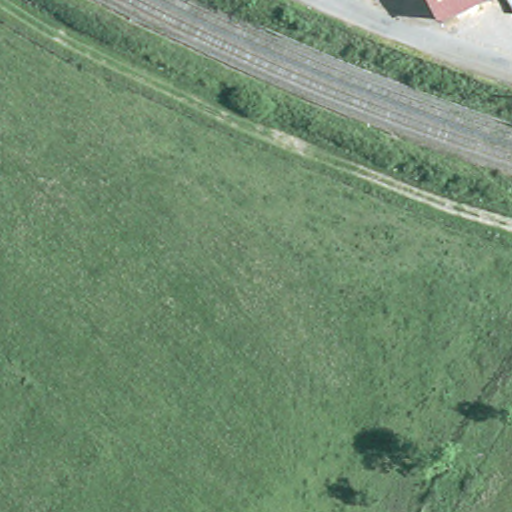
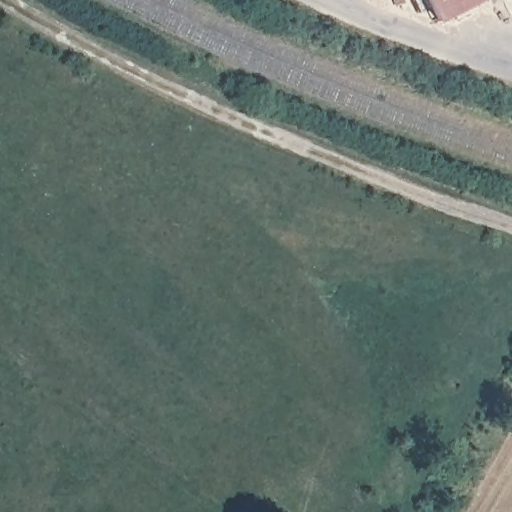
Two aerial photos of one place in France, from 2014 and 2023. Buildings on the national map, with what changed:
unchanged [(434,19),(424,0),(470,0),(434,19)]

